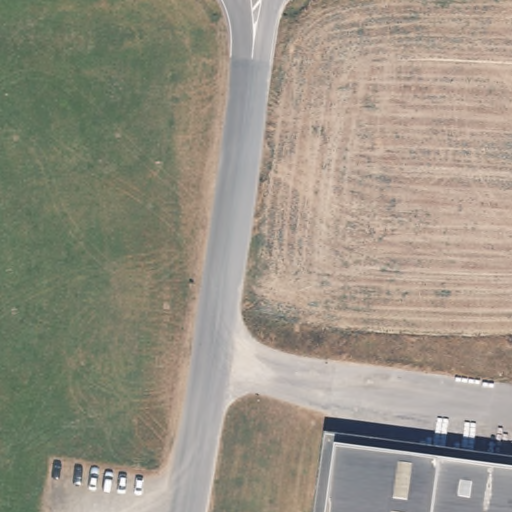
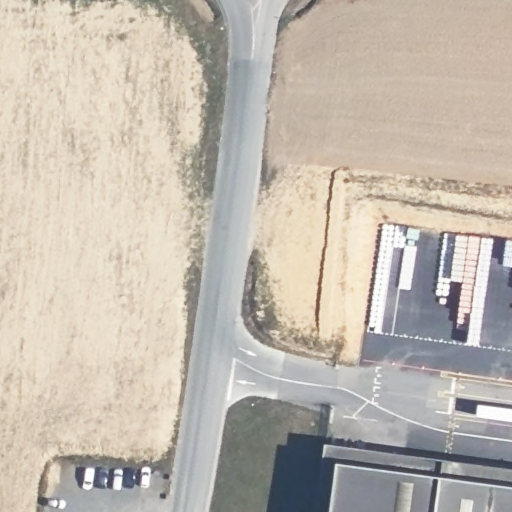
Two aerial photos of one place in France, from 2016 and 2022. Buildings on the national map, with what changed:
unchanged [(512,512),(300,512),(307,452),(512,480),(512,512)]

